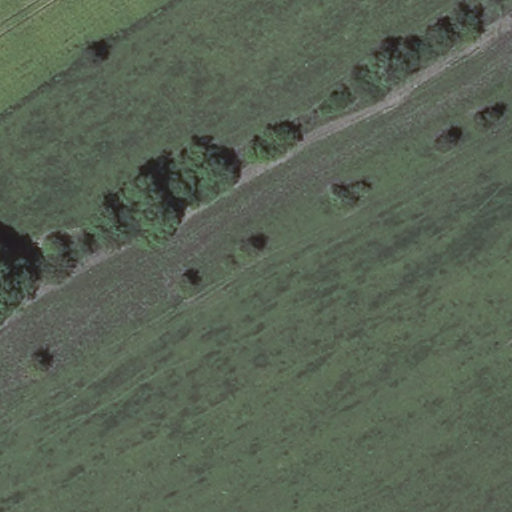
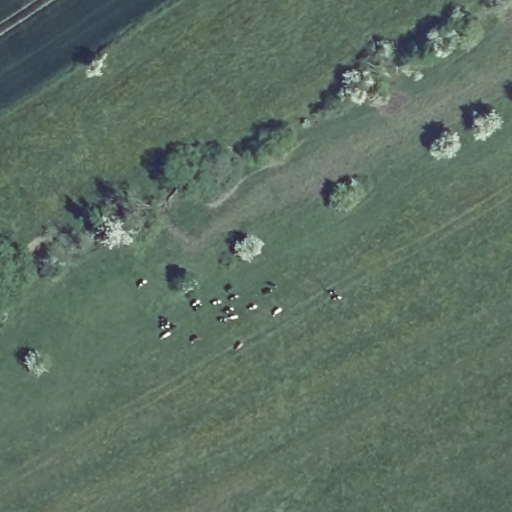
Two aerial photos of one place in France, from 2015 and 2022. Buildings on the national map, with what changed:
[]

